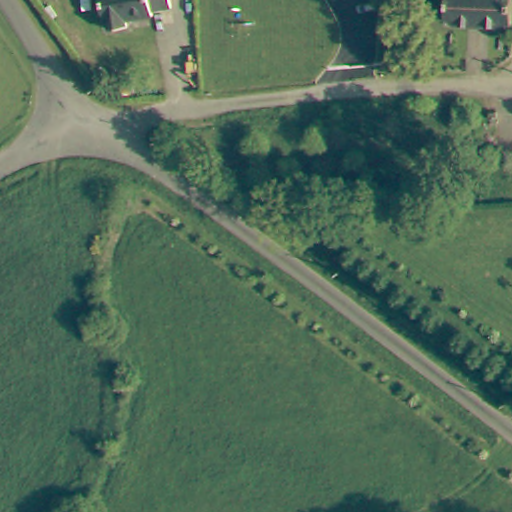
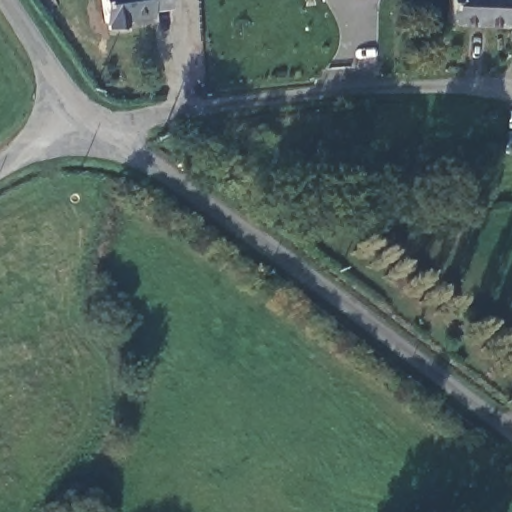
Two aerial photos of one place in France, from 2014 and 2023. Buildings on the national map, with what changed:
unchanged [(146,5),(147,11),(122,14),(124,25),(101,28),(97,0),(167,0),(167,3),(146,5)]
unchanged [(449,0),(512,0),(512,19),(448,18),(449,0)]

